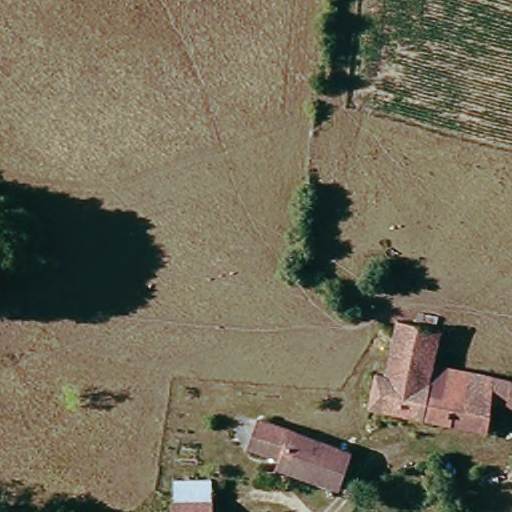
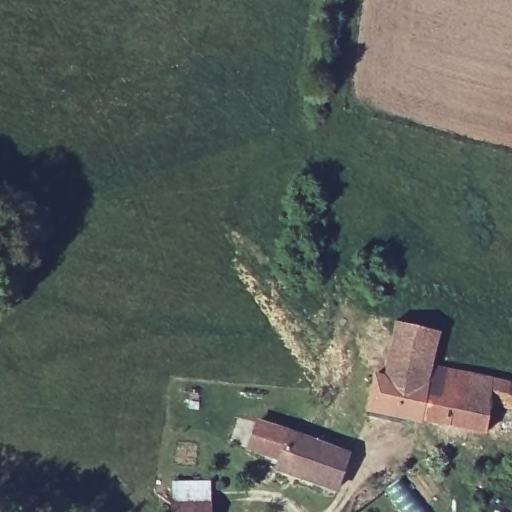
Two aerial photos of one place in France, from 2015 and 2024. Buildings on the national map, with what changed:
unchanged [(422,425),(367,414),(376,379),(384,381),(395,326),(436,333),(433,347),(430,370),(422,425)]
unchanged [(512,386),(512,427),(507,442),(422,425),(430,370),(512,386)]
unchanged [(282,427),(277,439),(290,443),(282,464),(246,452),(256,419),(282,427)]
unchanged [(292,481),(282,506),(259,499),(271,463),(281,467),(282,464),(290,443),(277,439),(282,427),(322,442),(306,484),(292,481)]
unchanged [(356,452),(342,494),(306,484),(322,442),(356,452)]
unchanged [(211,483),(212,512),(175,512),(177,479),(211,483)]

